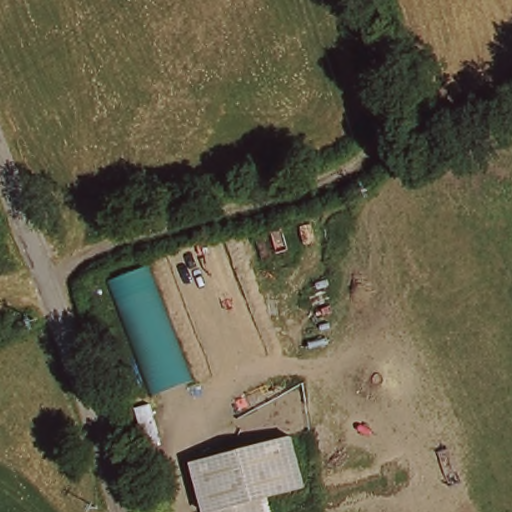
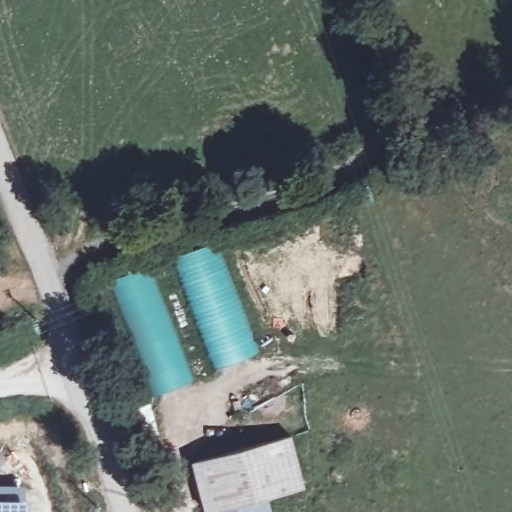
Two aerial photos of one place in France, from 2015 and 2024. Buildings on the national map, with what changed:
new [(177,258),(218,244),(260,353),(218,366),(177,258)]
unchanged [(152,397),(108,279),(148,263),(193,381),(152,397)]
unchanged [(303,490),(272,501),(274,512),(204,512),(193,465),(290,438),(303,490)]
new [(25,493),(25,512),(0,512),(0,493),(25,493)]

